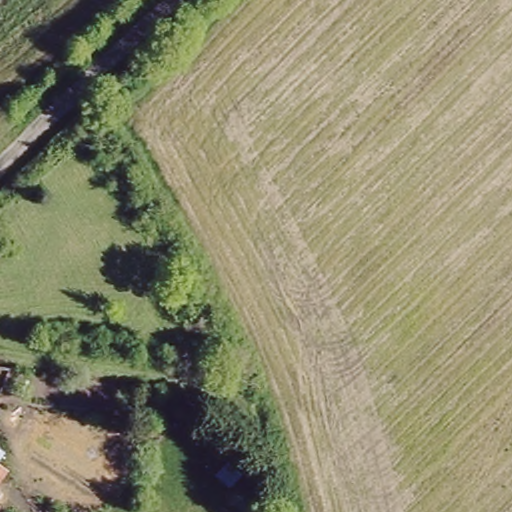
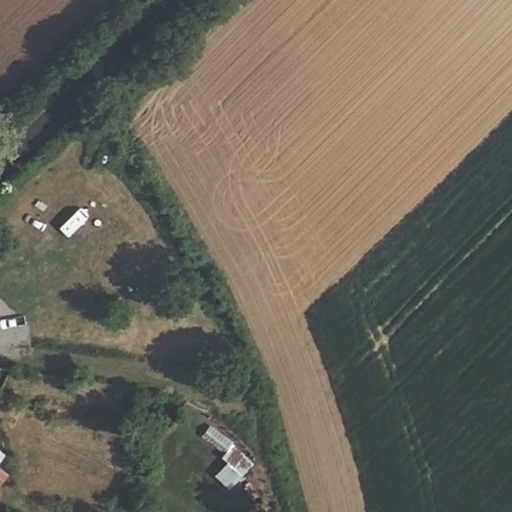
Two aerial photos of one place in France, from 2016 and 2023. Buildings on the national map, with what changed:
unchanged [(211,420),(255,459),(227,488),(217,473),(227,463),(216,456),(221,450),(198,434),(211,420)]

